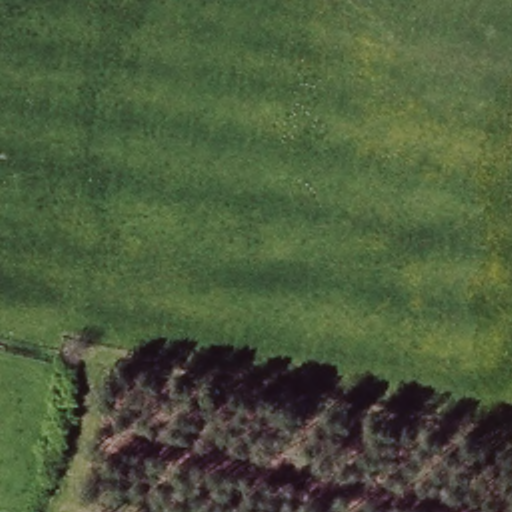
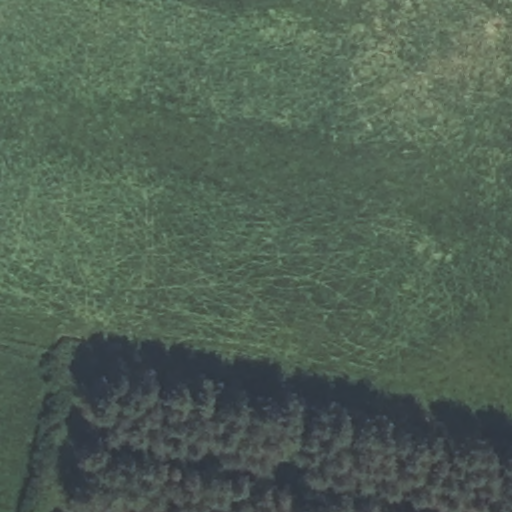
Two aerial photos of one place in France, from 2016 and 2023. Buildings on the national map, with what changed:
[]

